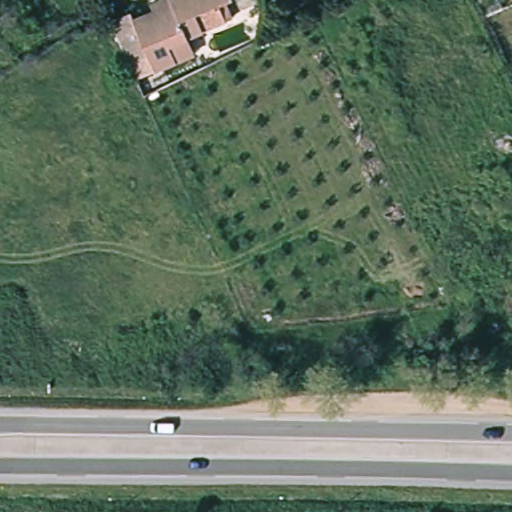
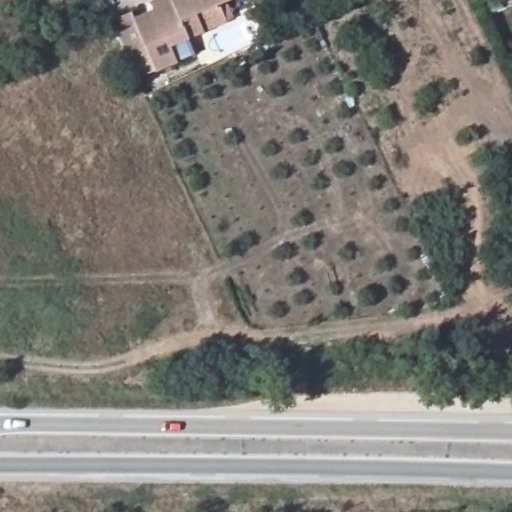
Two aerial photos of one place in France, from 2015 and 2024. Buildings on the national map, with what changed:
unchanged [(125,11),(129,18),(149,8),(146,1),(150,0),(216,0),(215,1),(222,17),(184,34),(191,50),(133,75),(107,19),(125,11)]

